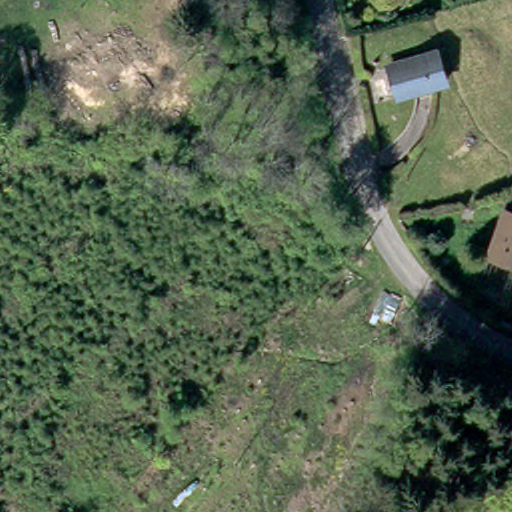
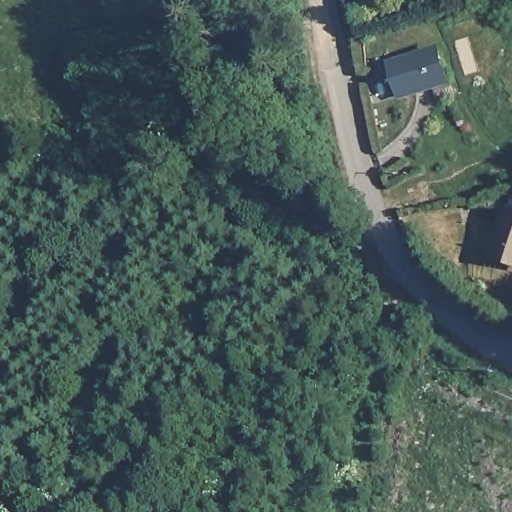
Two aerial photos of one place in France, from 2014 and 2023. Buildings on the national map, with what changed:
unchanged [(444,90),(400,101),(391,66),(438,54),(444,90)]
unchanged [(512,212),(512,267),(491,260),(512,212)]

